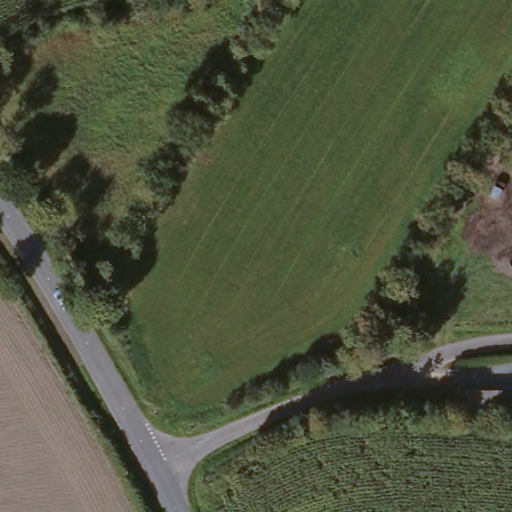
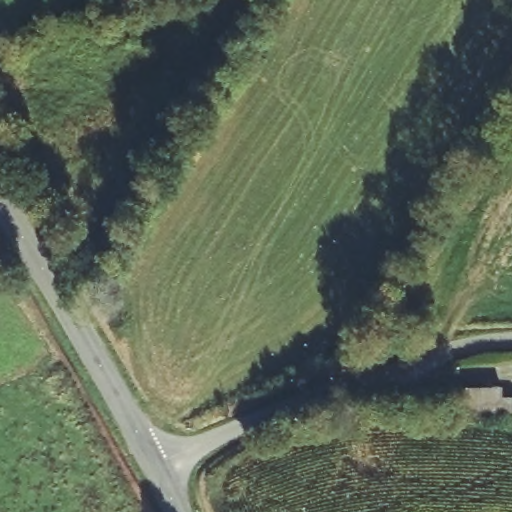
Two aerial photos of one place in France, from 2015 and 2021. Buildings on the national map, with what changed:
unchanged [(505,423),(463,423),(464,396),(505,398),(505,406),(512,404),(512,422),(505,423)]

